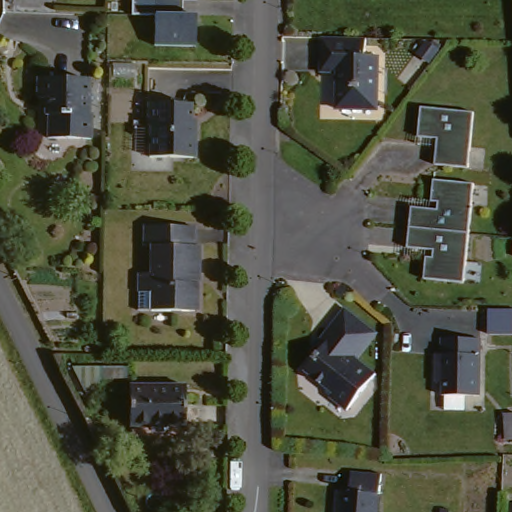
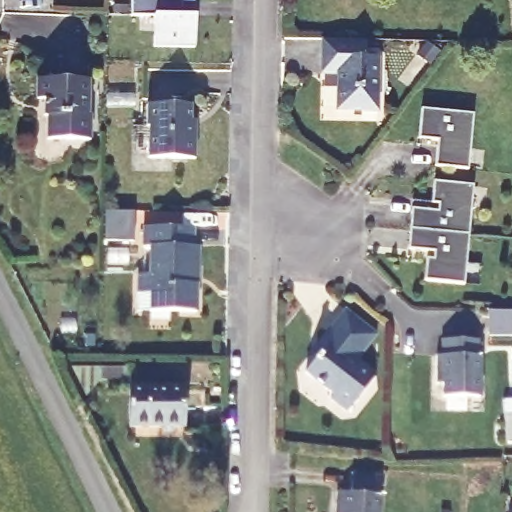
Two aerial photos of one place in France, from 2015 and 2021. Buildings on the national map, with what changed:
unchanged [(195,2),(181,2),(181,16),(195,16),(195,48),(150,47),(150,19),(129,19),(129,0),(195,0),(195,2)]
unchanged [(365,40),(365,61),(377,61),(377,113),(338,114),(338,80),(322,80),(322,62),(321,40),(365,40)]
unchanged [(47,139),(48,116),(42,116),(41,100),(35,100),(35,78),(86,78),(86,111),(90,111),(90,139),(47,139)]
unchanged [(152,159),(153,129),(149,126),(148,108),(194,110),(193,130),(198,130),(196,160),(152,159)]
unchanged [(437,165),(438,141),(421,141),(422,110),(474,113),(471,167),(437,165)]
unchanged [(431,185),(471,188),(470,203),(464,287),(425,284),(426,262),(433,263),(433,255),(405,253),(408,211),(436,214),(437,206),(430,206),(431,203),(431,185)]
unchanged [(143,312),(142,275),(153,276),(153,249),(145,250),(146,228),(196,229),(195,247),(201,247),(201,313),(143,312)]
unchanged [(512,324),(489,324),(489,299),(512,299),(512,324)]
unchanged [(376,345),(356,368),(372,382),(345,412),(331,398),(335,394),(310,371),(315,364),(306,355),(316,344),(341,314),(376,345)]
unchanged [(476,340),(476,398),(439,397),(439,384),(433,384),(433,356),(439,356),(439,340),(476,340)]
unchanged [(180,388),(179,427),(125,427),(125,388),(180,388)]
unchanged [(512,430),(503,430),(503,405),(512,405),(512,430)]
unchanged [(347,493),(347,474),(378,475),(378,512),(333,512),(333,492),(347,493)]

